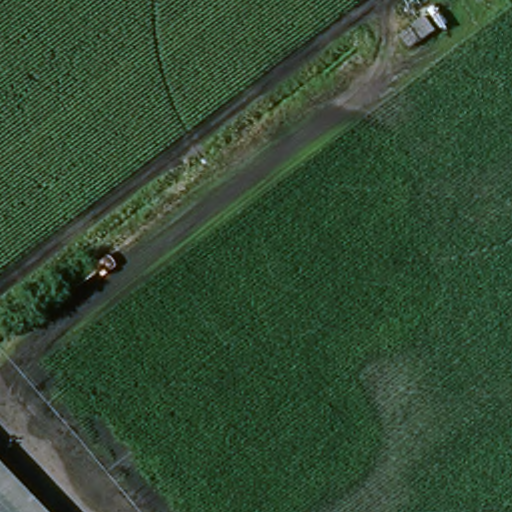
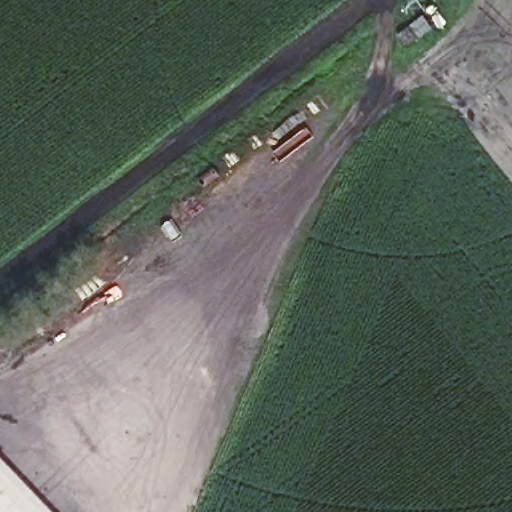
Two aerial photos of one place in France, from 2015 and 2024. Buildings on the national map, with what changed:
unchanged [(0,512),(0,456),(51,512),(0,512)]

